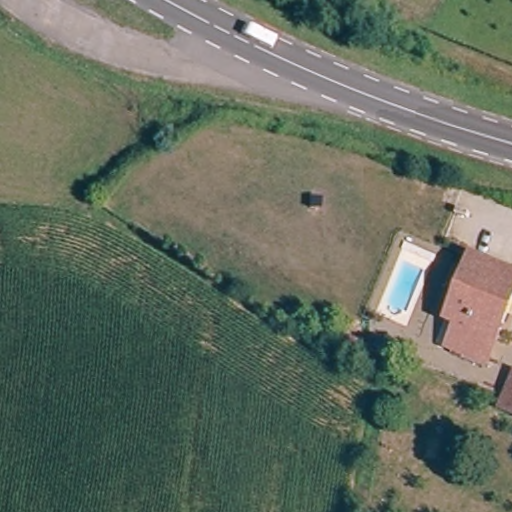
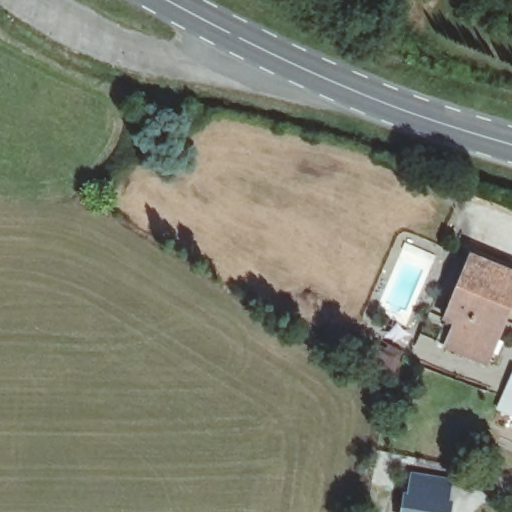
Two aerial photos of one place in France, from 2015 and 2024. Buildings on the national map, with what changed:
unchanged [(486,365),(446,344),(453,323),(442,317),(466,252),(512,270),(512,285),(486,365)]
unchanged [(399,359),(389,378),(297,333),(308,312),(399,359)]
unchanged [(499,405),(511,374),(512,372),(512,411),(499,405)]
new [(450,499),(455,500),(453,512),(401,512),(405,494),(409,494),(412,473),(452,480),(450,499)]

